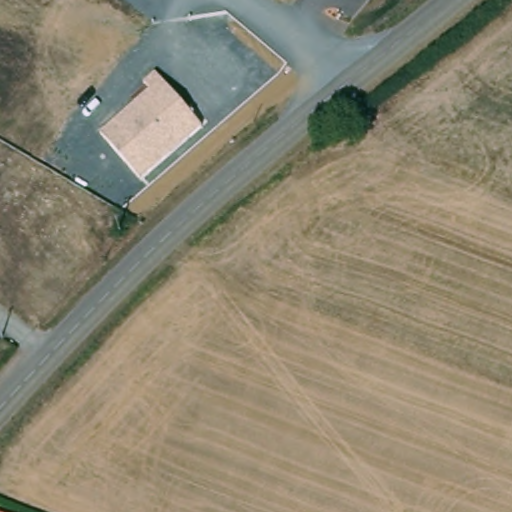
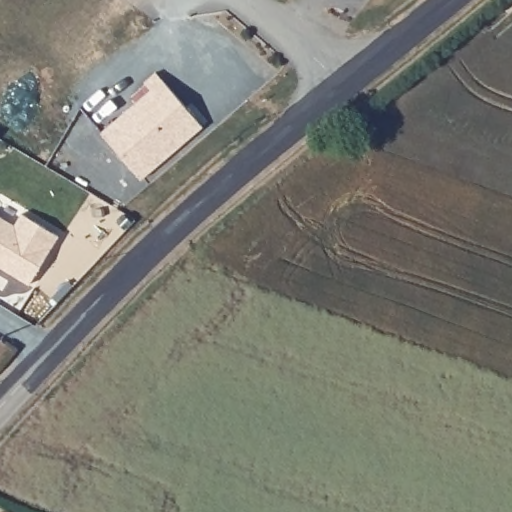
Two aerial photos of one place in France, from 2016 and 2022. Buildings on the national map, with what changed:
unchanged [(149,91),(142,85),(156,72),(199,127),(139,180),(104,132),(149,91)]
new [(14,225),(21,213),(59,236),(30,285),(0,267),(0,216),(14,225)]

